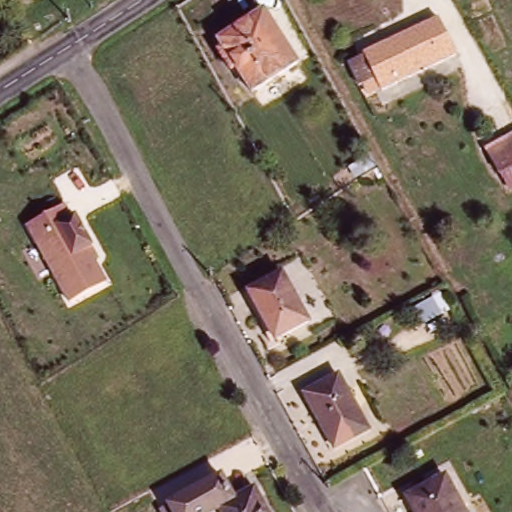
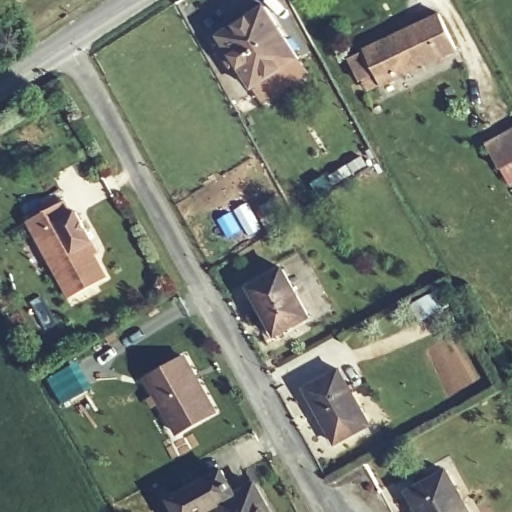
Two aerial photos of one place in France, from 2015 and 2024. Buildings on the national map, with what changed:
unchanged [(254,85),(221,33),(265,4),(299,56),(254,85)]
unchanged [(454,49),(392,85),(383,69),(368,78),(356,55),(432,8),(454,49)]
unchanged [(501,168),(487,140),(512,126),(512,182),(504,167),(501,168)]
unchanged [(68,296),(25,220),(62,200),(69,213),(73,211),(90,239),(89,241),(95,251),(91,253),(104,276),(68,296)]
unchanged [(280,268),(306,315),(275,332),(248,285),(280,268)]
new [(181,360),(211,414),(173,436),(143,381),(181,360)]
unchanged [(340,367),(369,419),(337,436),(308,385),(340,367)]
new [(69,369),(82,392),(60,405),(46,381),(69,369)]
unchanged [(223,467),(237,492),(257,482),(273,512),(215,512),(181,512),(172,495),(223,467)]
unchanged [(472,512),(420,512),(410,493),(450,471),(472,512)]

